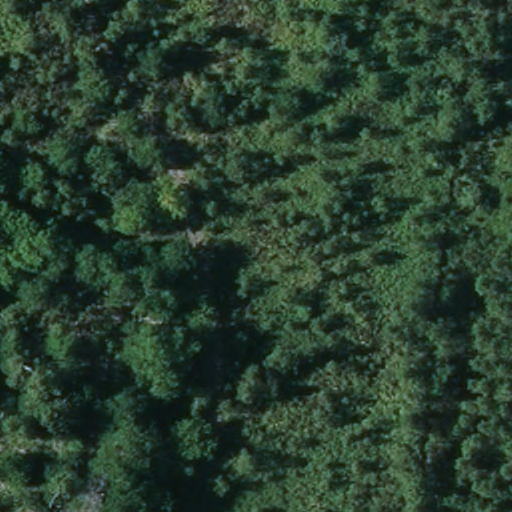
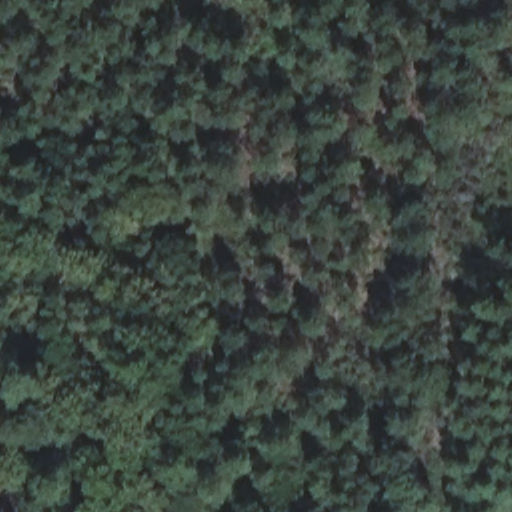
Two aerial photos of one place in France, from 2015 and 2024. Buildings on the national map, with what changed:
[]

